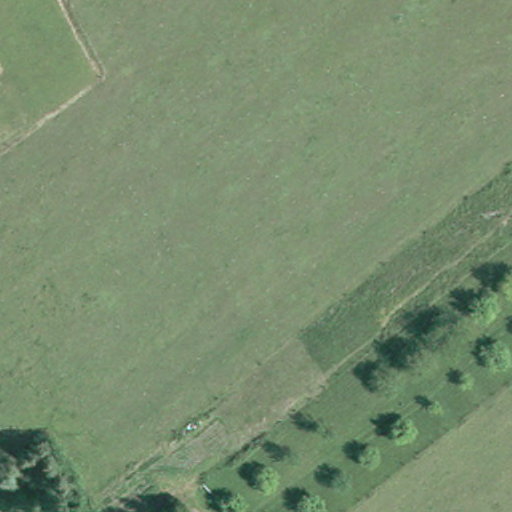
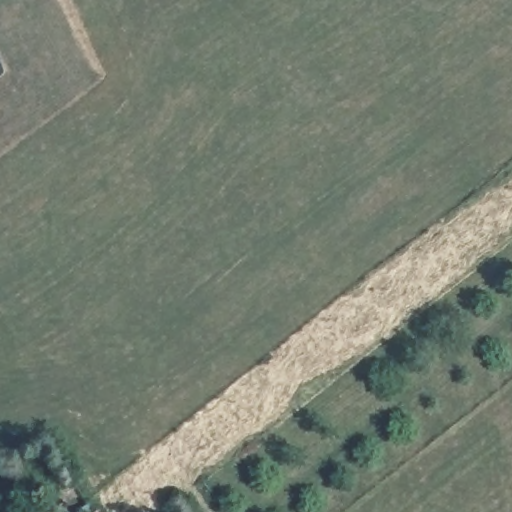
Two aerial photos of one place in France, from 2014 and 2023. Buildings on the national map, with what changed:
unchanged [(106,512),(103,512),(105,511),(106,512)]

